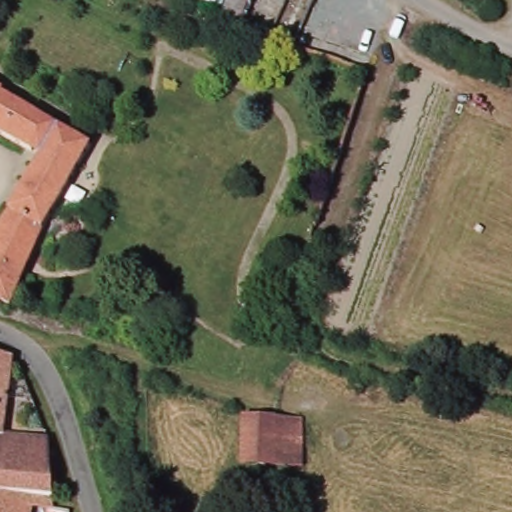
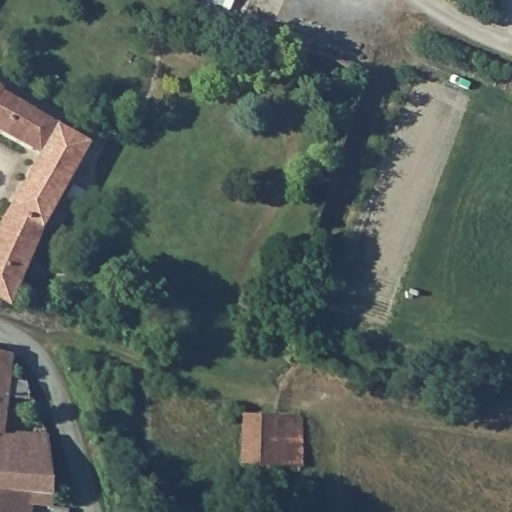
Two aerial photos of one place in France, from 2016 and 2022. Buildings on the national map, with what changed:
unchanged [(243,28),(227,21),(230,15),(236,0),(319,0),(296,51),(243,28)]
unchanged [(10,305),(0,300),(0,238),(10,220),(41,160),(0,136),(0,90),(25,105),(74,135),(93,147),(52,220),(44,235),(16,301),(24,303),(24,312),(17,312),(10,305)]
unchanged [(3,432),(49,435),(53,505),(68,510),(68,512),(0,512),(0,353),(15,356),(3,432)]
unchanged [(247,470),(247,423),(305,422),(305,469),(247,470)]

